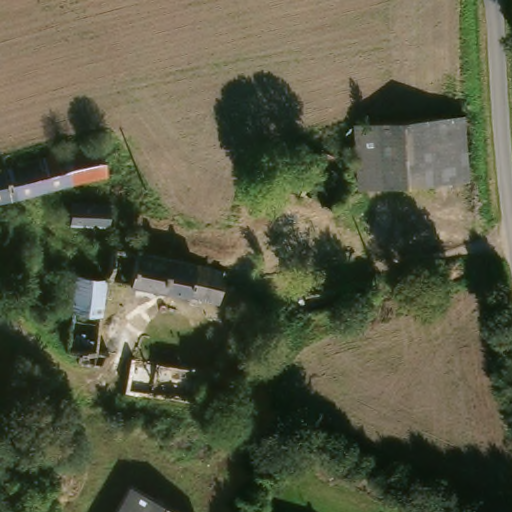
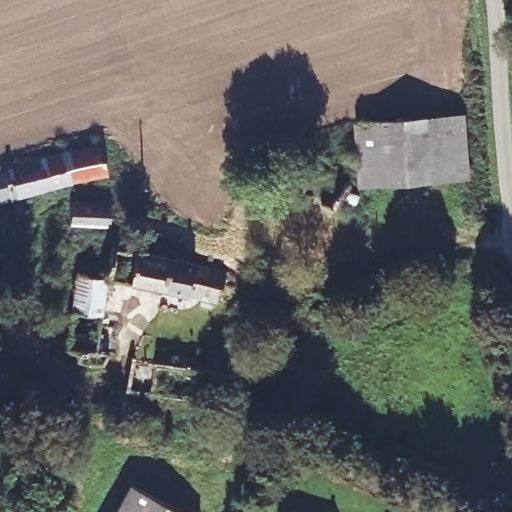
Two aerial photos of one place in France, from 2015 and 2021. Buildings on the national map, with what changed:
unchanged [(351,133),(457,111),(469,173),(363,195),(351,133)]
unchanged [(16,199),(13,169),(119,144),(126,174),(16,199)]
unchanged [(16,199),(0,202),(0,173),(13,169),(14,178),(16,199)]
unchanged [(72,230),(69,209),(109,204),(113,225),(72,230)]
unchanged [(126,286),(103,281),(110,249),(132,254),(224,274),(216,305),(126,286)]
unchanged [(371,277),(376,301),(311,314),(306,289),(371,277)]
unchanged [(106,353),(103,371),(82,369),(79,365),(79,353),(66,352),(74,279),(103,281),(98,309),(92,352),(106,353)]
unchanged [(241,319),(273,327),(259,375),(224,367),(241,319)]
unchanged [(131,491),(168,512),(119,512),(131,491)]

